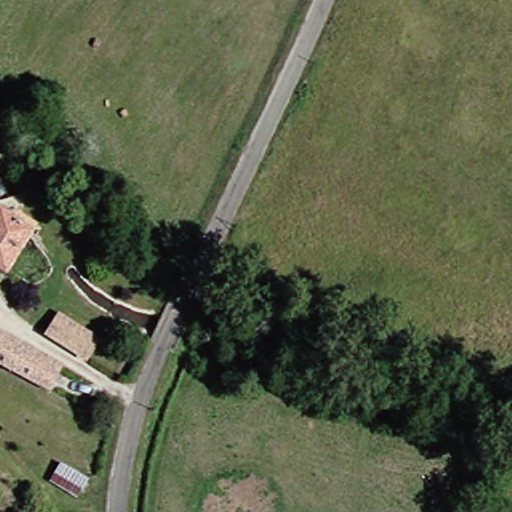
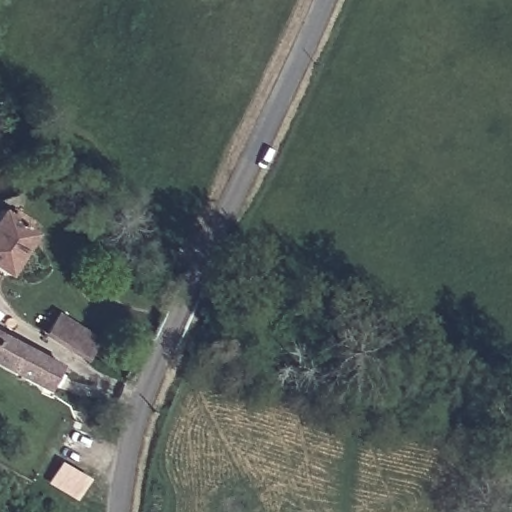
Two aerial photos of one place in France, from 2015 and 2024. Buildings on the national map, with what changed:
unchanged [(42,224),(10,274),(0,267),(0,213),(2,209),(0,209),(0,202),(8,202),(20,211),(21,209),(42,224)]
unchanged [(91,352),(54,327),(64,311),(102,335),(91,352)]
unchanged [(59,390),(0,360),(0,327),(72,366),(59,390)]
unchanged [(85,496),(60,480),(71,463),(96,479),(85,496)]

